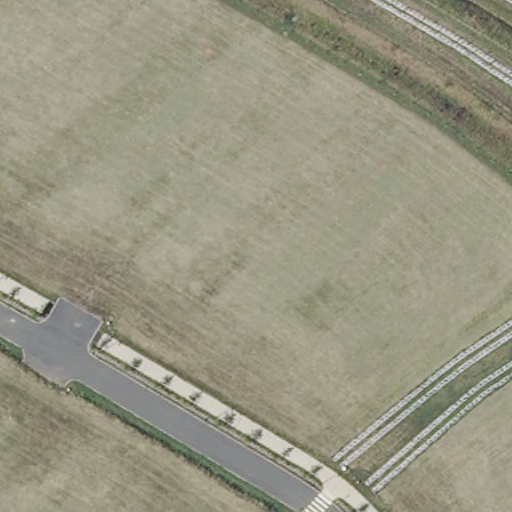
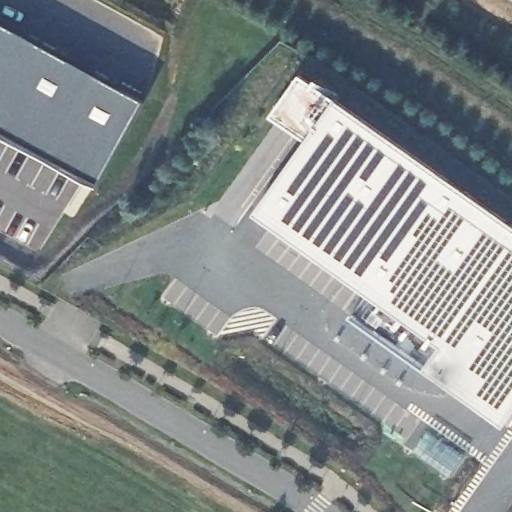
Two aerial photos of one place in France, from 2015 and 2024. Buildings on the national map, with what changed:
new [(97,178),(0,125),(0,20),(141,99),(97,178)]
new [(512,229),(512,440),(507,447),(415,385),(429,362),(248,235),(303,158),(265,129),(301,78),(512,229)]

